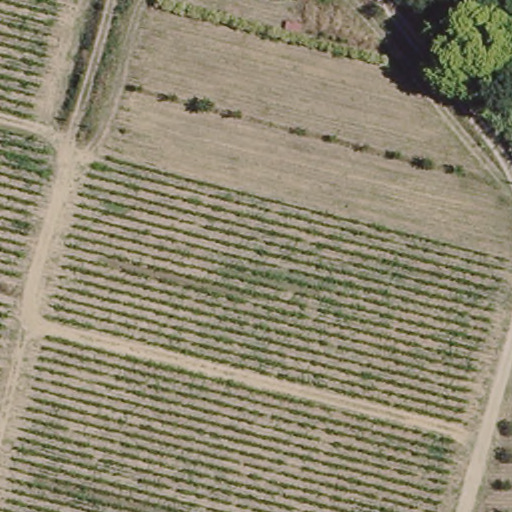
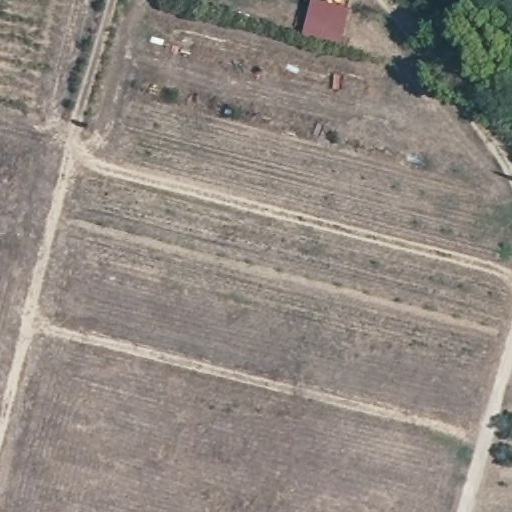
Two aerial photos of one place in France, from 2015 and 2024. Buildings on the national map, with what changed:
new [(306,1),(302,0),(306,0),(306,1)]
new [(349,10),(341,38),(303,29),(311,1),(349,10)]

